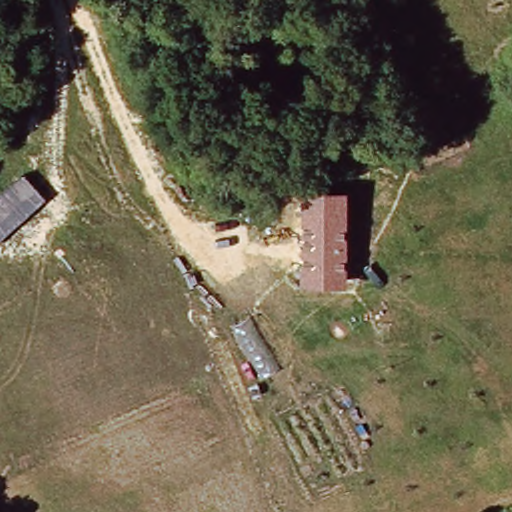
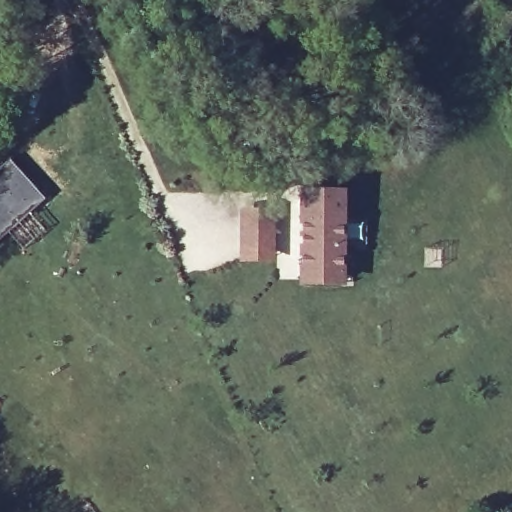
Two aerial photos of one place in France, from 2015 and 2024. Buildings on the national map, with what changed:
unchanged [(0,240),(0,195),(22,175),(45,200),(0,240)]
unchanged [(345,287),(299,287),(300,193),(347,192),(345,287)]
new [(267,205),(267,219),(275,219),(276,263),(238,263),(238,206),(267,205)]

